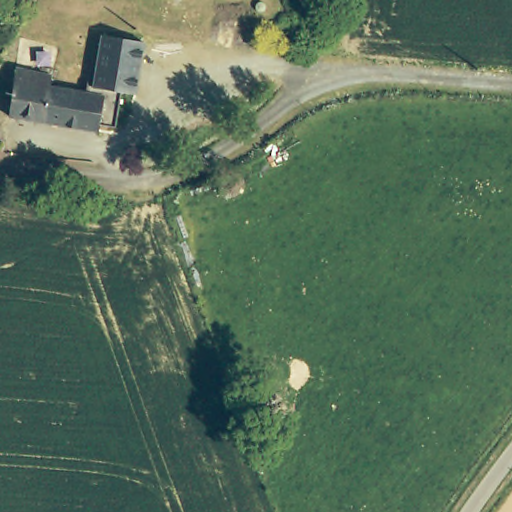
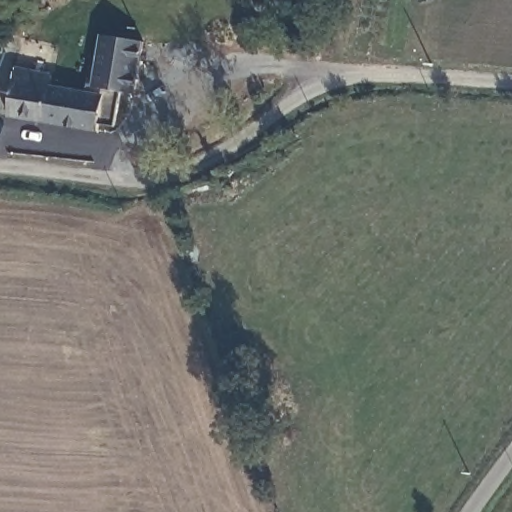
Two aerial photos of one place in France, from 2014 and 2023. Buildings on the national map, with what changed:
unchanged [(21,71),(57,77),(55,88),(93,95),(96,79),(98,80),(103,51),(107,30),(149,36),(146,54),(140,89),(126,86),(119,127),(103,125),(101,132),(13,117),(21,71)]

